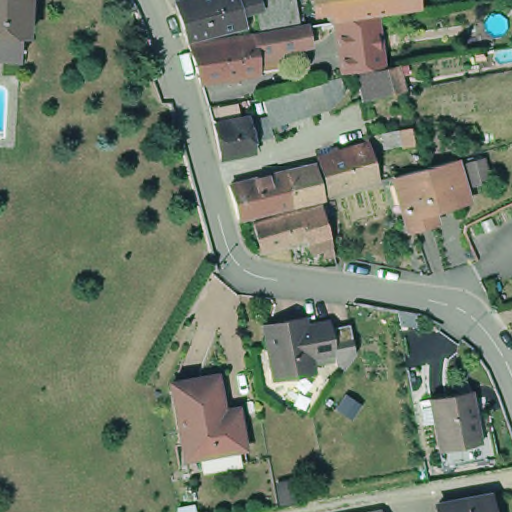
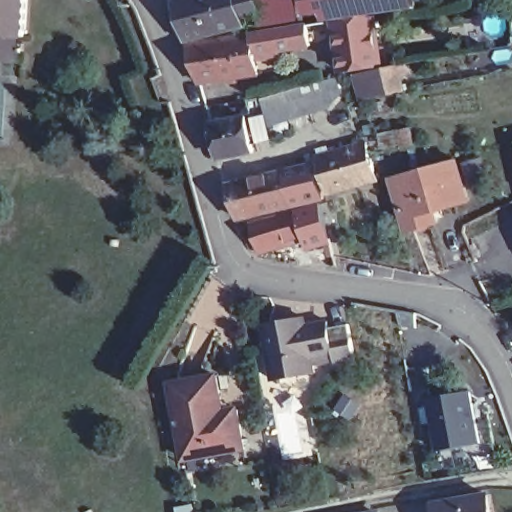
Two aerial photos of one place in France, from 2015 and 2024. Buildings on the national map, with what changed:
unchanged [(0,34),(0,0),(27,0),(25,36),(0,34)]
unchanged [(294,24),(305,23),(309,50),(257,59),(260,74),(199,84),(176,0),(290,0),(294,24)]
unchanged [(335,23),(323,23),(322,17),(309,19),(305,0),(414,0),(415,18),(382,20),(377,20),(335,23)]
unchanged [(377,20),(382,20),(385,66),(400,62),(405,92),(362,99),(358,68),(337,71),(335,23),(377,20)]
unchanged [(332,80),(334,93),(325,95),(322,81),(332,80)]
unchanged [(319,85),(327,110),(312,115),(305,89),(319,85)]
unchanged [(267,121),(261,98),(281,94),(288,91),(303,86),(310,109),(312,115),(297,120),(269,127),(267,121)]
unchanged [(252,153),(220,158),(212,124),(245,118),(252,153)]
unchanged [(372,144),(383,179),(333,194),(323,158),(372,144)]
unchanged [(398,177),(403,175),(425,169),(459,160),(467,187),(470,199),(436,210),(440,222),(414,230),(407,206),(398,177)]
unchanged [(233,186),(289,172),(290,177),(297,175),(295,171),(300,170),(302,174),(320,170),(327,198),(297,206),(243,219),(233,186)]
unchanged [(328,246),(324,247),(323,243),(312,246),(310,241),(267,253),(258,224),(302,211),(325,205),(328,216),(335,239),(335,241),(339,256),(330,258),(328,246)]
unchanged [(308,367),(307,367),(268,374),(267,374),(257,320),(297,312),(298,320),(320,316),(322,323),(344,319),(350,349),(338,364),(328,359),(327,354),(307,358),(308,367)]
unchanged [(307,367),(310,386),(301,401),(290,403),(272,391),(268,374),(307,367)]
unchanged [(179,460),(165,385),(210,377),(217,413),(231,410),(233,421),(238,450),(179,460)]
unchanged [(475,441),(432,449),(424,397),(466,390),(475,441)]
unchanged [(486,498),(489,512),(437,512),(437,507),(486,498)]

